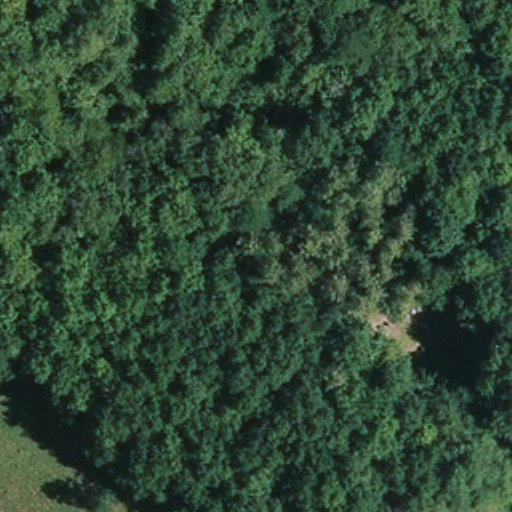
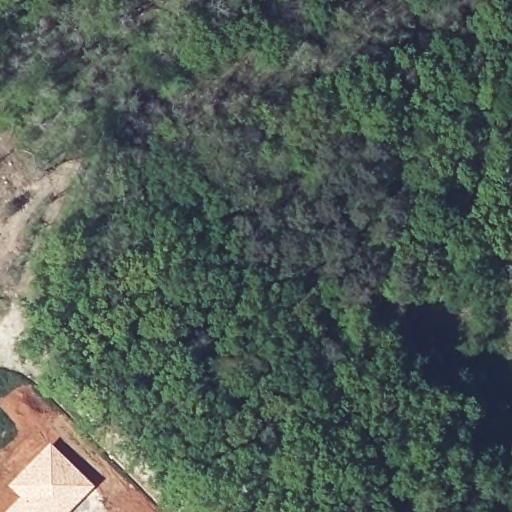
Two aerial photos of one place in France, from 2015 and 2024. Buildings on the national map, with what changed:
new [(8,487),(50,444),(94,487),(70,512),(6,512),(19,498),(8,487)]

